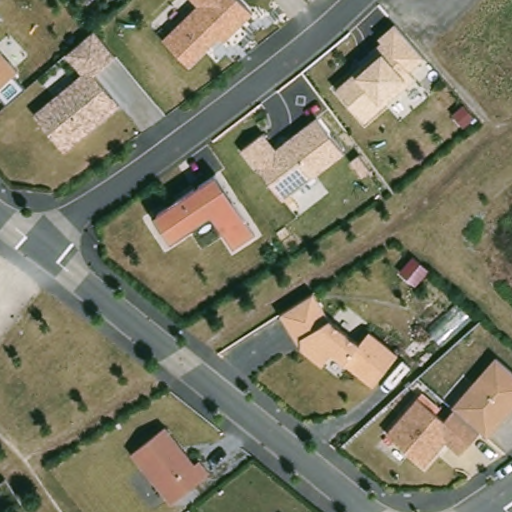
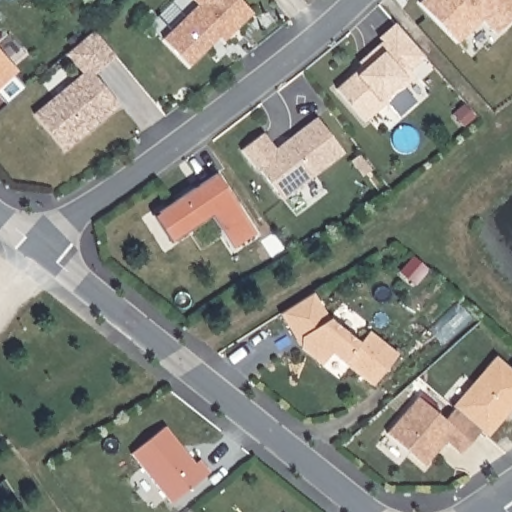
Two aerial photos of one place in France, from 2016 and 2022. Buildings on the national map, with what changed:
unchanged [(162,39),(198,5),(193,0),(239,0),(252,14),(223,42),(219,37),(211,44),(189,66),(162,39)]
new [(482,19),(460,42),(420,3),(424,0),(512,0),(512,19),(496,35),(482,19)]
unchanged [(361,66),(358,62),(370,52),(382,41),(379,37),(395,23),(425,56),(409,70),(415,77),(365,121),(336,89),(361,66)]
unchanged [(111,111),(65,150),(34,114),(54,97),(69,85),(83,73),(66,53),(94,29),(115,56),(94,74),(111,96),(119,105),(111,111)]
unchanged [(17,72),(0,88),(0,53),(17,72)]
unchanged [(240,151),(261,134),(274,150),(282,144),(315,118),(345,152),(281,200),(256,167),(254,169),(240,151)]
unchanged [(233,248),(231,246),(211,216),(171,243),(153,216),(216,174),(254,231),(255,233),(233,248)]
unchanged [(333,319),(361,342),(371,328),(400,351),(373,385),(347,363),(335,353),(327,364),(302,343),(284,313),(316,293),(333,319)]
unchanged [(445,420),(495,357),(512,371),(512,409),(486,438),(480,431),(459,454),(445,443),(424,467),(386,433),(419,400),(445,420)]
unchanged [(171,503),(132,453),(165,427),(195,464),(200,460),(210,473),(171,503)]

